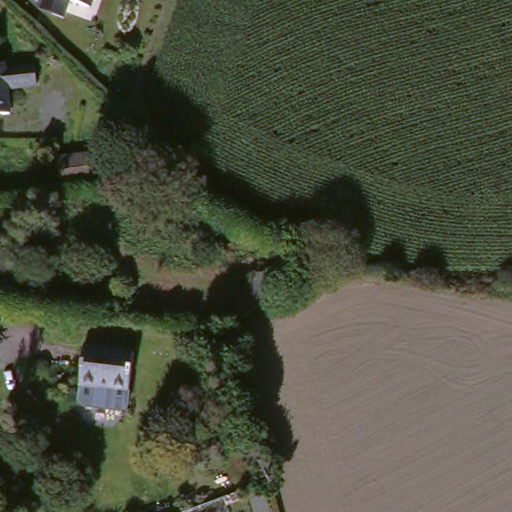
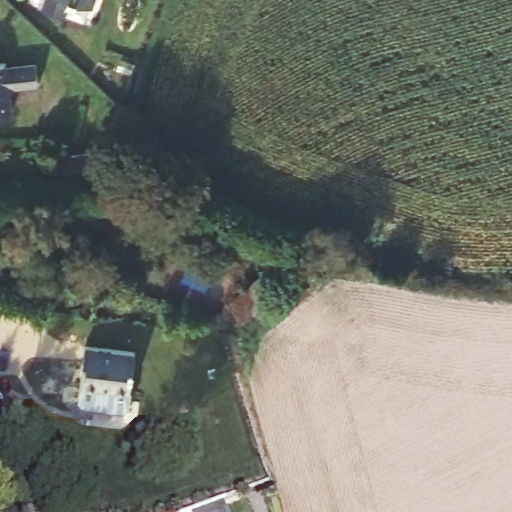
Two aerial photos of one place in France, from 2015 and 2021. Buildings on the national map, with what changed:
unchanged [(63,0),(93,0),(89,10),(63,0)]
unchanged [(38,87),(9,95),(9,117),(0,118),(0,67),(3,67),(5,72),(33,65),(38,87)]
unchanged [(116,181),(56,185),(55,158),(88,157),(91,160),(113,157),(116,181)]
unchanged [(228,305),(263,275),(279,293),(244,323),(228,305)]
unchanged [(129,394),(99,390),(97,393),(79,391),(84,349),(134,355),(129,394)]

